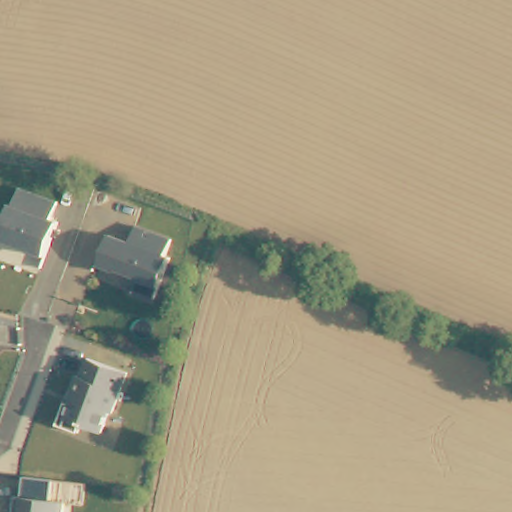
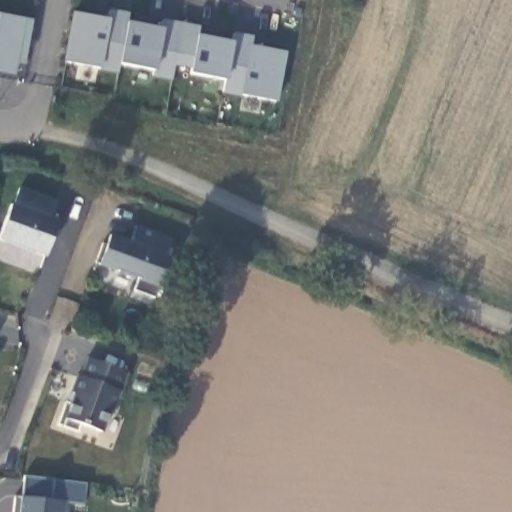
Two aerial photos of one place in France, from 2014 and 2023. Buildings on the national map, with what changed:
new [(278,101),(241,94),(225,91),(227,79),(190,73),(190,67),(176,64),(172,81),(152,76),(154,70),(119,63),(117,71),(101,68),(65,62),(75,13),(108,20),(111,9),(130,12),(129,22),(164,29),(165,19),(201,26),(199,36),(232,42),(235,33),(254,36),(252,46),(287,52),(278,101)]
new [(32,20),(24,64),(17,63),(15,76),(0,74),(0,14),(27,19),(32,20)]
unchanged [(51,218),(57,221),(45,257),(0,240),(0,233),(11,204),(15,206),(19,189),(57,203),(51,218)]
unchanged [(129,242),(137,225),(171,239),(162,255),(170,257),(157,288),(153,297),(135,290),(139,281),(101,266),(109,234),(129,242)]
unchanged [(78,376),(81,376),(89,359),(128,374),(103,433),(82,426),(78,435),(57,427),(78,376)]
unchanged [(85,506),(65,503),(63,512),(13,512),(15,497),(22,498),(24,477),(87,484),(85,506)]

